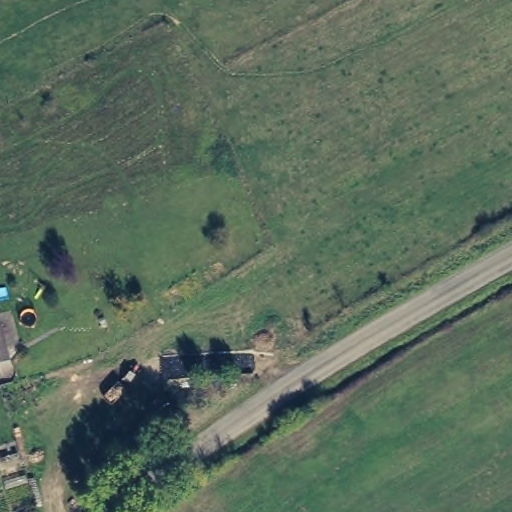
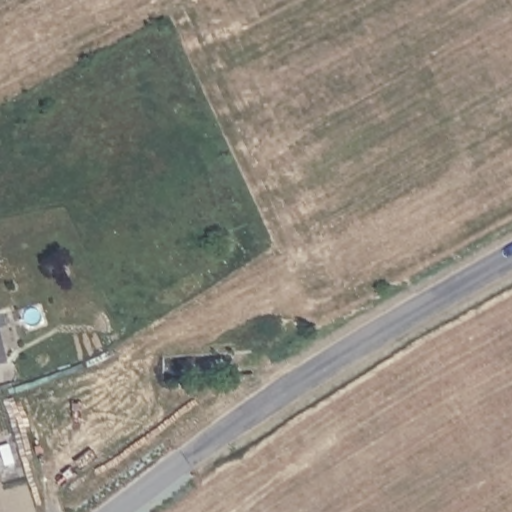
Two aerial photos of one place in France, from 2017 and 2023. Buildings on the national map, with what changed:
unchanged [(0,371),(0,365),(2,371),(0,371)]

